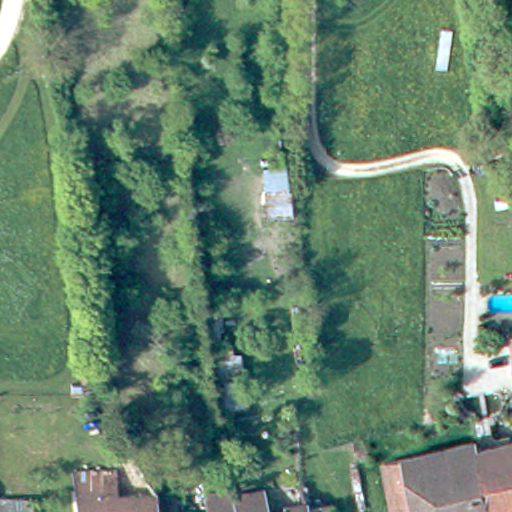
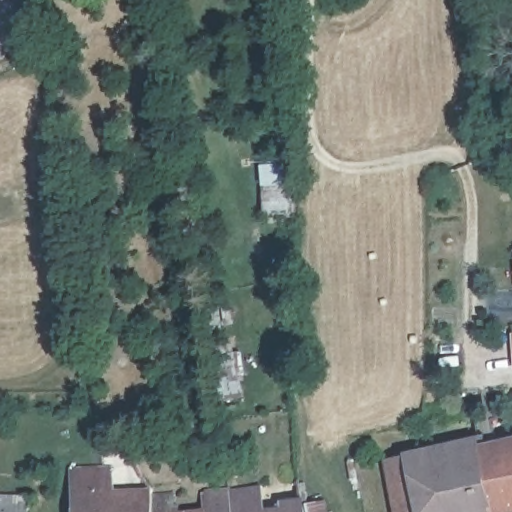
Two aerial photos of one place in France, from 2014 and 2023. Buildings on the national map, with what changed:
unchanged [(485,442),(486,450),(491,484),(495,512),(401,512),(391,463),(485,442)]
unchanged [(495,512),(491,484),(486,450),(512,443),(512,512),(495,512)]
unchanged [(139,467),(145,477),(153,492),(154,500),(155,512),(78,512),(73,472),(139,467)]
unchanged [(264,491),(266,512),(234,512),(232,495),(264,491)]
unchanged [(204,512),(202,496),(231,492),(232,495),(234,512),(204,512)]
unchanged [(175,497),(176,512),(155,512),(154,500),(175,497)]
unchanged [(282,502),(302,500),(304,511),(322,508),(323,512),(270,512),(284,510),(282,502)]
unchanged [(0,512),(0,502),(32,502),(32,512),(0,512)]

